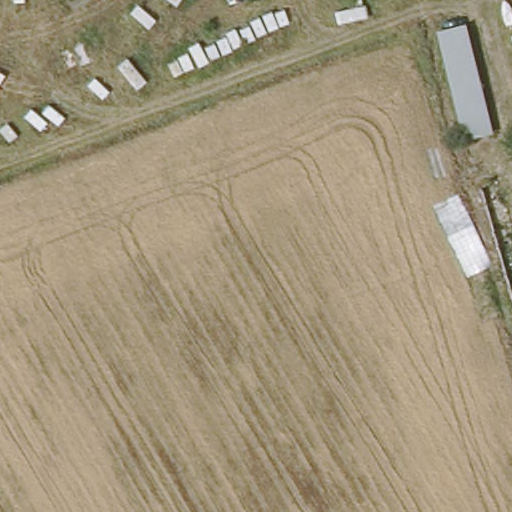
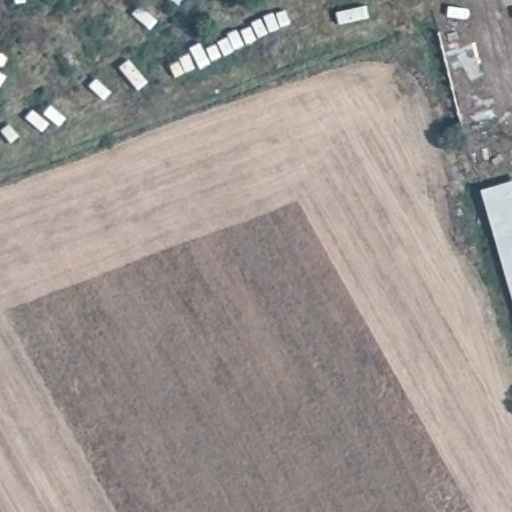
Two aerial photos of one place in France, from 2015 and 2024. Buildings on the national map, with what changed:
new [(512,181),(512,292),(481,189),(512,181)]

